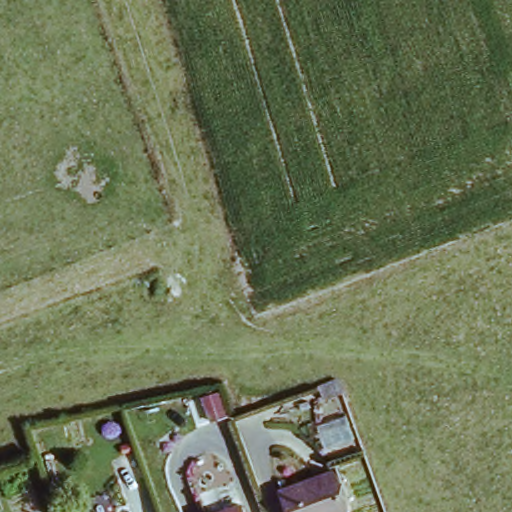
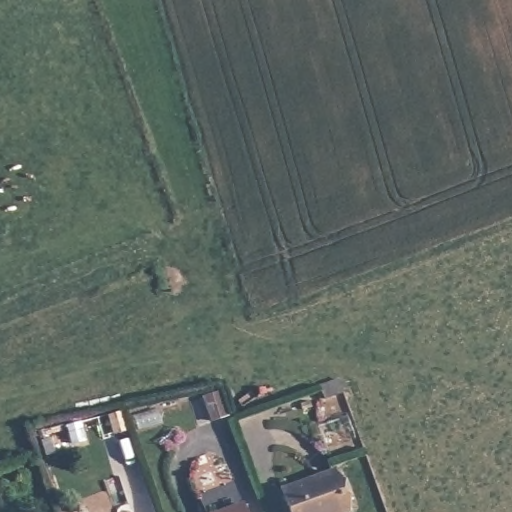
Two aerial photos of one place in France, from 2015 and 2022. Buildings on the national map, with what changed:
unchanged [(294,512),(283,488),(333,465),(348,500),(350,503),(330,512),(294,512)]
unchanged [(247,512),(238,512),(246,509),(247,512)]

